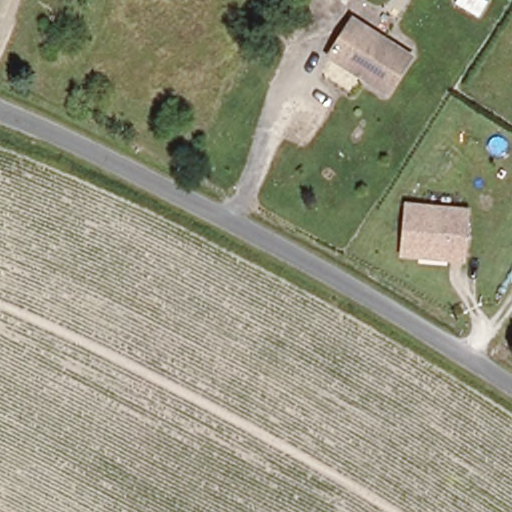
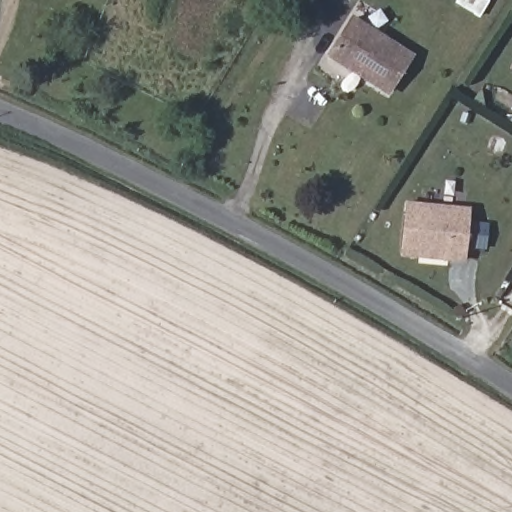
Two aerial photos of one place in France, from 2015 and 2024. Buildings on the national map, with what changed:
unchanged [(457,0),(483,0),(489,3),(480,19),(454,5),(457,0)]
unchanged [(327,61),(347,20),(408,51),(388,93),(327,61)]
unchanged [(400,259),(404,208),(466,212),(462,263),(400,259)]

